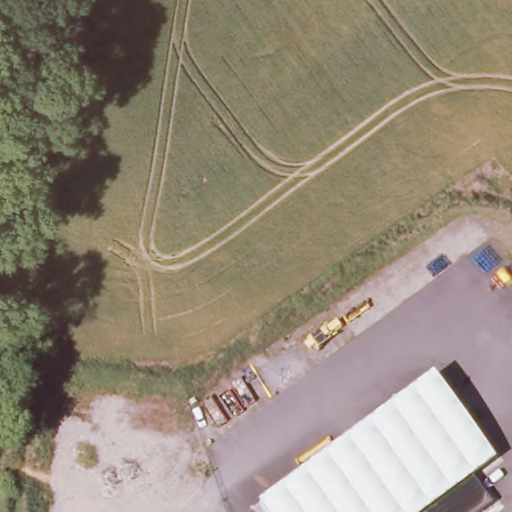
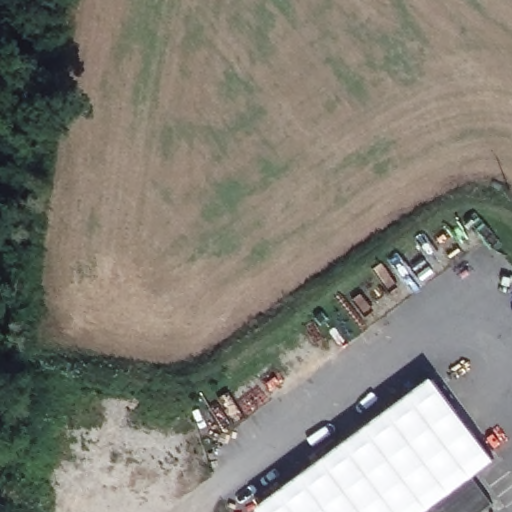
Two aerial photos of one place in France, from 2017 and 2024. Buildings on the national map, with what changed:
unchanged [(495,457),(473,473),(494,502),(480,512),(263,512),(260,508),(434,377),(495,457)]

